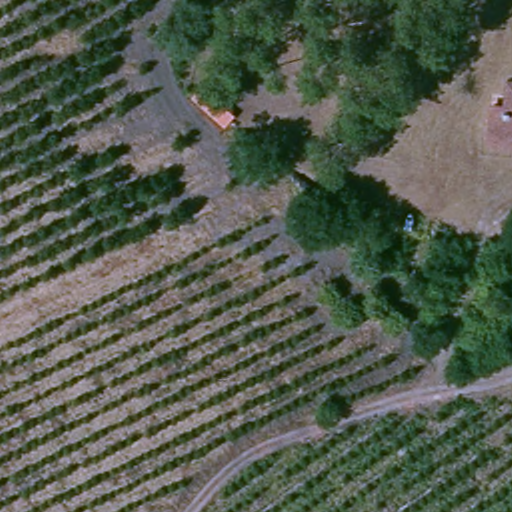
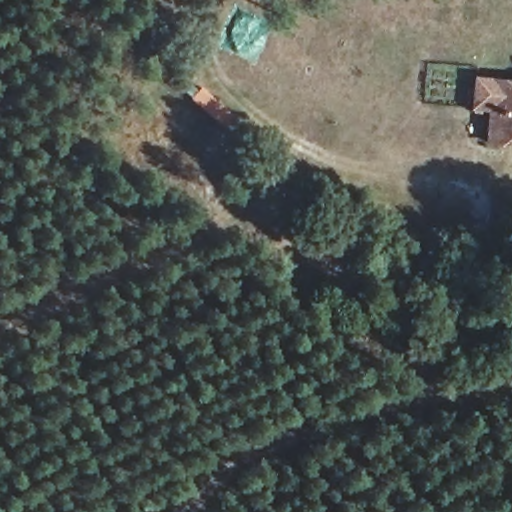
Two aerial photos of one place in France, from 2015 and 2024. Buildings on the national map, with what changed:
new [(512,145),(487,144),(488,110),(473,109),(475,74),(512,78),(512,145)]
demolished [(508,107),(509,83),(512,83),(512,145),(482,144),(487,108),(508,107)]

